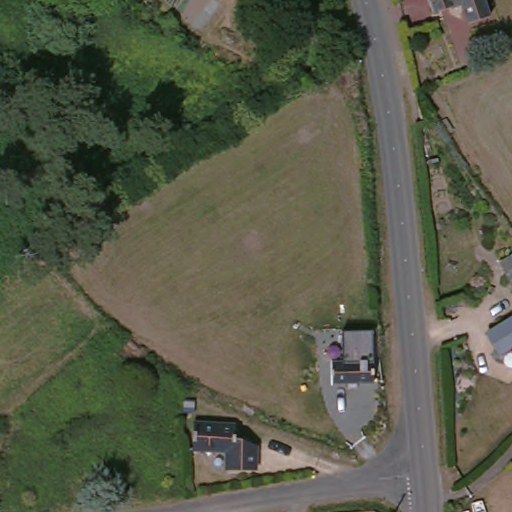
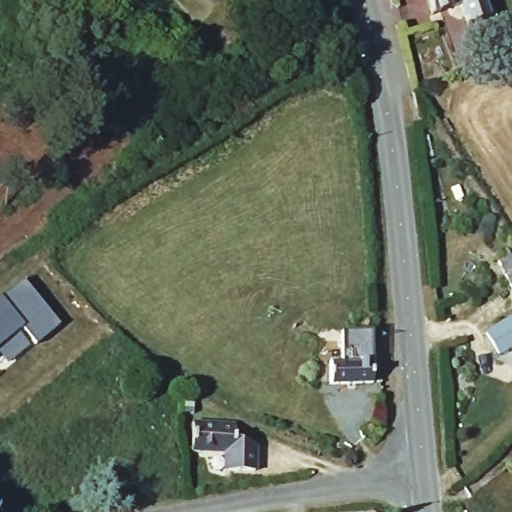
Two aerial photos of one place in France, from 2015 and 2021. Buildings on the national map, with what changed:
unchanged [(420,0),(476,0),(482,22),(458,29),(453,11),(425,18),(420,0)]
unchanged [(481,263),(491,256),(512,284),(512,294),(506,298),(481,263)]
new [(61,331),(37,351),(23,334),(0,353),(0,306),(24,286),(61,331)]
unchanged [(508,349),(503,351),(491,332),(511,320),(512,320),(512,346),(508,349)]
unchanged [(325,392),(324,379),(318,379),(318,370),(340,369),(340,357),(366,357),(366,391),(325,392)]
unchanged [(213,445),(221,445),(234,450),(234,476),(204,475),(206,457),(171,456),(172,427),(211,429),(214,429),(213,445)]

